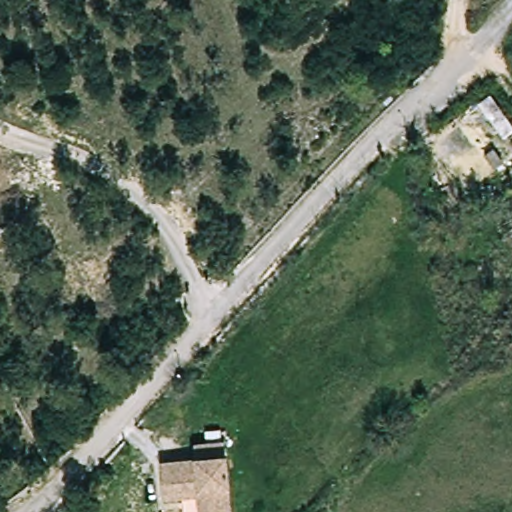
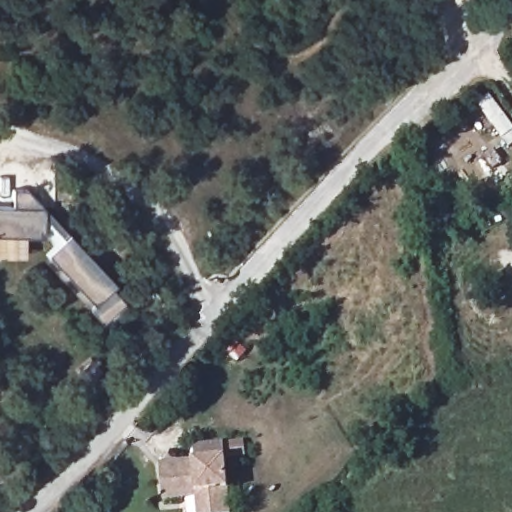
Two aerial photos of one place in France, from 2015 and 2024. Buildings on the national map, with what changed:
unchanged [(493,169),(485,158),(493,151),(502,164),(493,169)]
new [(13,190),(28,190),(43,207),(42,236),(0,235),(0,207),(12,207),(13,190)]
new [(69,234),(115,283),(109,289),(120,299),(99,320),(86,309),(91,304),(45,257),(69,234)]
unchanged [(173,503),(172,498),(166,466),(201,459),(198,446),(228,441),(230,454),(240,512),(207,512),(205,497),(173,503)]

